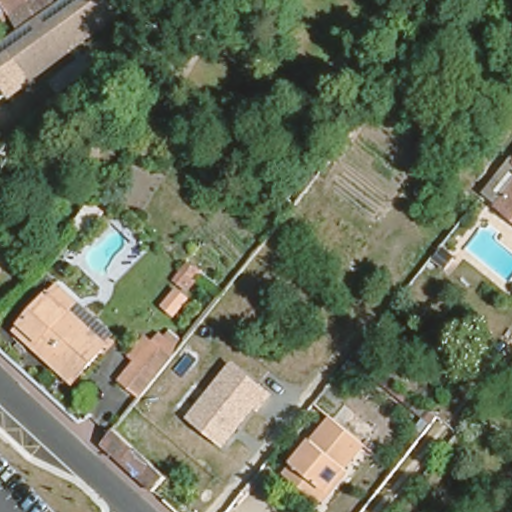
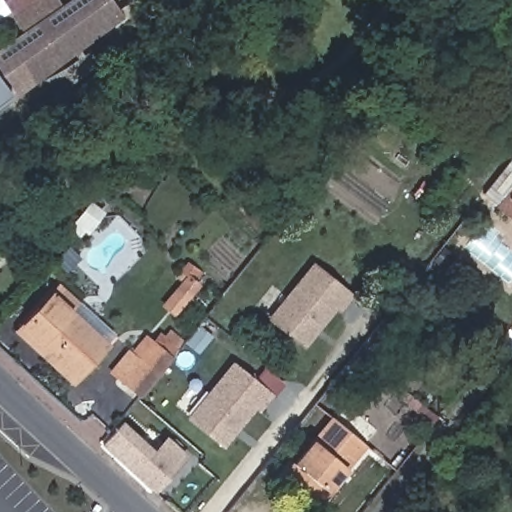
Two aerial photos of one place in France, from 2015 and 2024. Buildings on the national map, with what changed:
unchanged [(18,29),(7,12),(0,17),(0,6),(3,4),(1,0),(46,0),(50,7),(58,1),(60,0),(131,0),(143,15),(90,58),(74,37),(2,92),(0,94),(0,42),(18,29)]
unchanged [(511,159),(512,160),(512,218),(483,195),(511,159)]
new [(354,295),(340,312),(335,309),(304,349),(266,319),(311,263),(354,295)]
unchanged [(10,327),(17,320),(51,281),(72,300),(107,331),(99,340),(68,374),(34,343),(31,346),(10,327)]
new [(170,357),(138,397),(107,371),(126,348),(131,352),(145,334),(152,339),(159,330),(165,335),(170,328),(182,341),(170,357)]
demolished [(163,360),(136,393),(119,379),(135,360),(127,353),(138,339),(163,360)]
unchanged [(260,411),(255,407),(223,448),(184,416),(233,358),(275,393),(260,411)]
unchanged [(283,471),(291,461),(328,416),(360,442),(321,487),(313,496),(283,471)]
new [(174,473),(170,468),(152,490),(100,445),(121,421),(153,451),(165,436),(187,456),(174,473)]
demolished [(174,477),(159,493),(105,443),(118,427),(174,477)]

